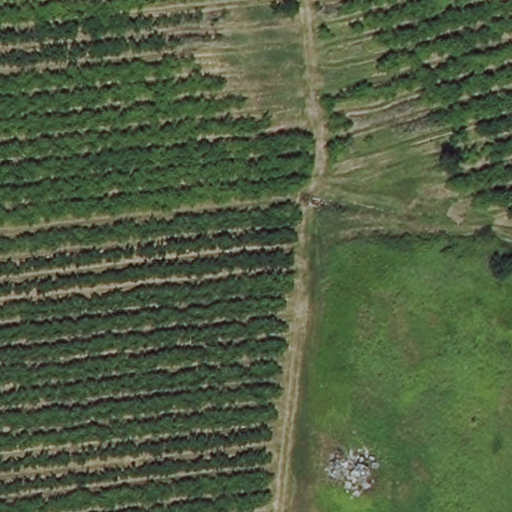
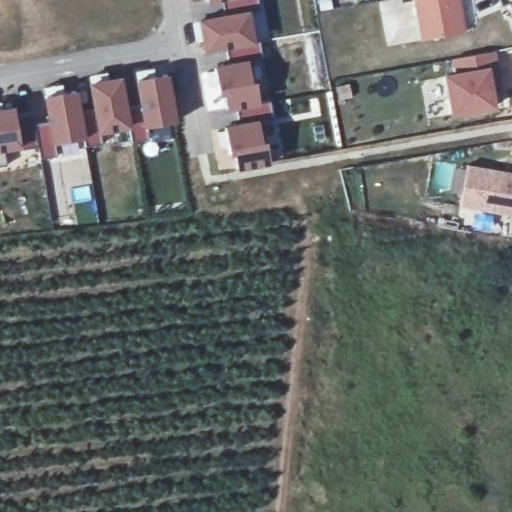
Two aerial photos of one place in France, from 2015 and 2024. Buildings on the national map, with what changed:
new [(249,11),(256,42),(260,44),(262,58),(248,60),(253,84),(256,84),(260,102),(269,101),(272,118),(258,119),(262,143),(266,142),(271,166),(236,171),(234,156),(229,157),(223,126),(239,124),(237,109),(227,110),(224,96),(220,96),(214,65),(228,62),(226,50),(205,54),(197,18),(222,15),(221,2),(206,4),(206,0),(257,0),(258,10),(249,11)]
new [(414,0),(459,0),(465,32),(423,40),(414,0)]
new [(452,70),(451,54),(495,48),(500,89),(488,91),(490,105),(445,111),(440,72),(452,70)]
new [(8,102),(9,114),(28,111),(30,121),(39,120),(35,90),(73,85),(75,108),(88,107),(85,78),(120,73),(122,105),(136,103),(133,74),(169,70),(174,115),(146,120),(148,136),(131,139),(129,124),(100,127),(102,140),(83,144),(81,131),(51,135),(54,151),(37,155),(35,140),(0,145),(0,103),(8,102)]
new [(468,165),(512,174),(512,218),(460,208),(468,165)]

